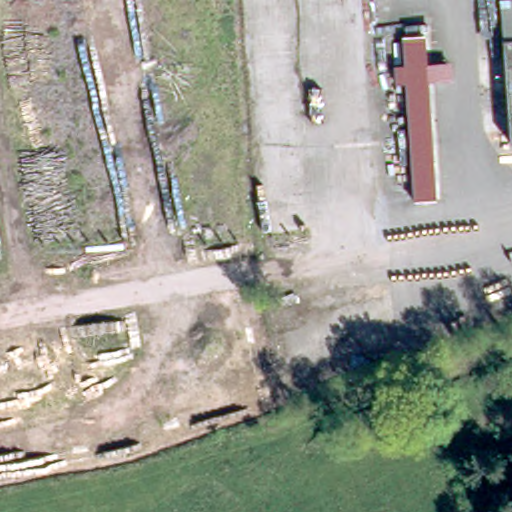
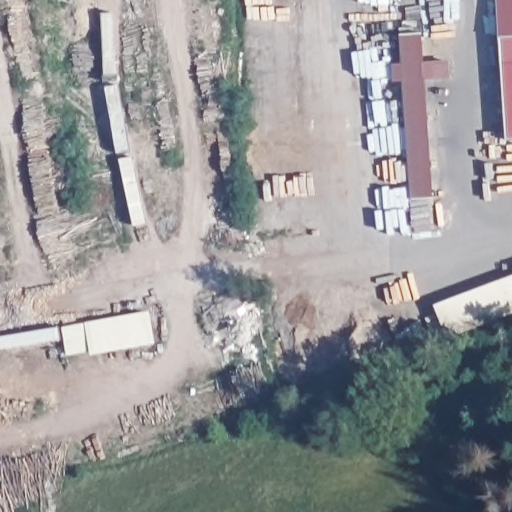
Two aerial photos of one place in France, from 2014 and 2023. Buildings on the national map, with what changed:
unchanged [(502,4),(512,3),(512,47),(504,47),(502,4)]
unchanged [(405,82),(395,83),(394,63),(404,63),(403,38),(425,36),(427,61),(454,60),(454,78),(429,80),(436,197),(412,199),(405,82)]
unchanged [(509,141),(504,47),(512,47),(512,141),(509,141)]
new [(157,344),(92,356),(86,323),(151,311),(157,344)]

